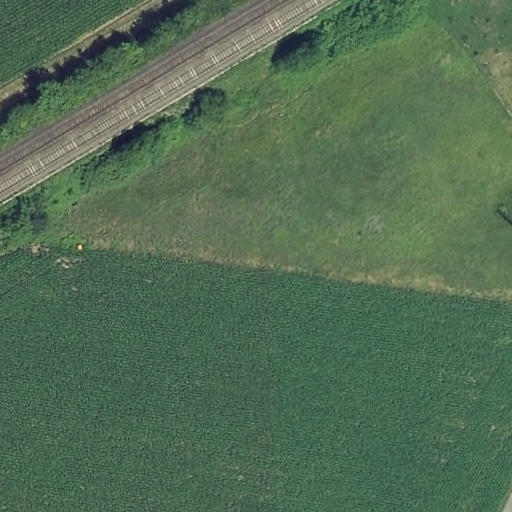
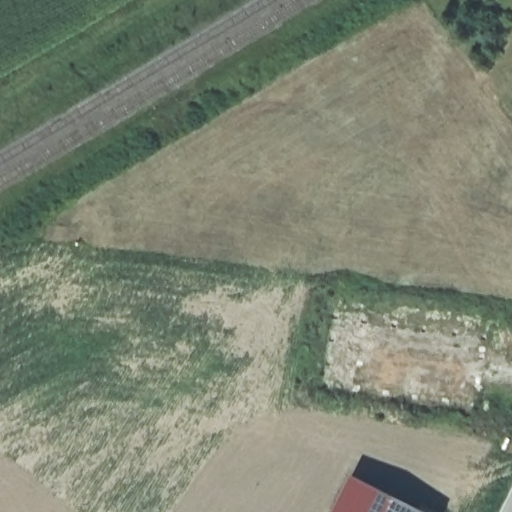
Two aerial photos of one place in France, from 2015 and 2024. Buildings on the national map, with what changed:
new [(427,512),(337,512),(356,476),(427,512)]

